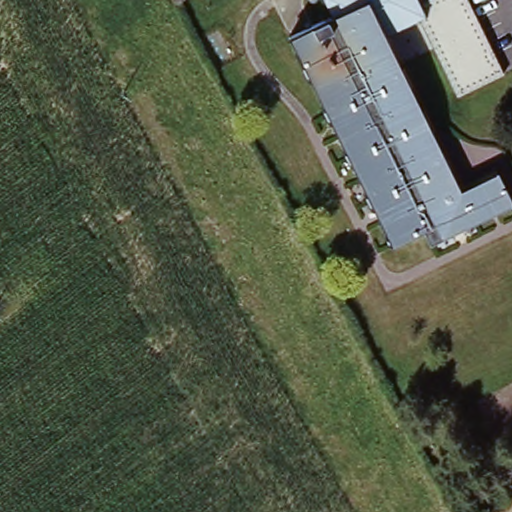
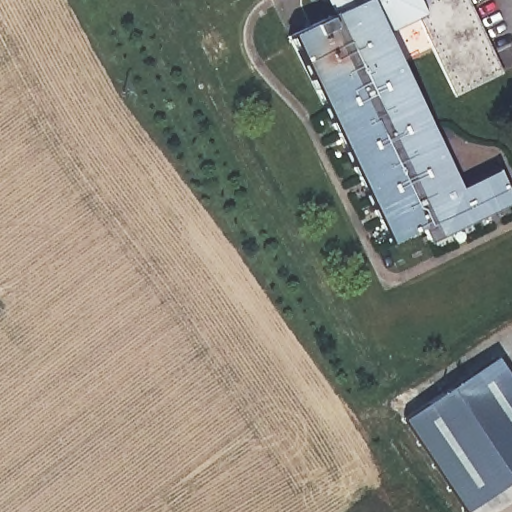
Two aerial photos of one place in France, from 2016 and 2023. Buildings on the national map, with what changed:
unchanged [(498,175),(512,203),(512,210),(470,230),(432,248),(425,233),(392,249),(370,201),(350,161),(332,124),(310,77),(292,40),(333,21),(330,15),(323,0),(408,0),(412,9),(418,5),(427,23),(421,26),(419,22),(386,39),(411,89),(434,136),(437,144),(456,184),(461,194),(498,175)]
unchanged [(424,3),(430,0),(467,0),(481,30),(505,80),(458,101),(437,57),(421,26),(427,23),(418,5),(424,3)]
new [(512,509),(508,512),(482,512),(413,414),(493,358),(512,384),(512,509)]

